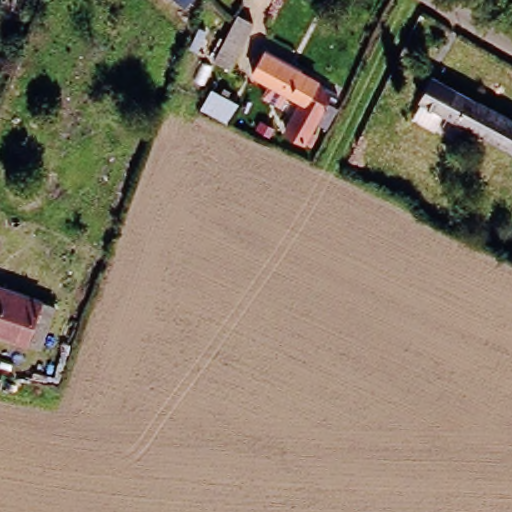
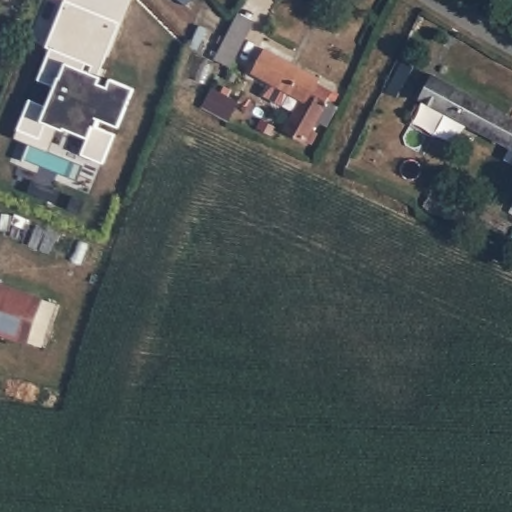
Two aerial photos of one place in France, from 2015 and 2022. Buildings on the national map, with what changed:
new [(30,99),(48,107),(56,87),(38,80),(51,49),(46,47),(63,6),(111,25),(93,69),(86,67),(83,73),(90,75),(103,80),(101,86),(110,90),(113,84),(136,92),(123,127),(105,120),(102,130),(120,137),(109,166),(86,156),(93,140),(67,130),(69,127),(50,120),(42,140),(18,130),(30,99)]
unchanged [(252,16),(230,65),(218,58),(238,10),(252,16)]
unchanged [(296,70),(295,72),(312,81),(311,82),(332,95),(318,122),(312,119),(302,136),(283,126),(297,99),(249,72),(261,51),(296,70)]
unchanged [(41,77),(13,135),(0,131),(0,102),(19,65),(41,77)]
unchanged [(433,69),(512,113),(512,142),(420,93),(433,69)]
unchanged [(203,96),(241,112),(235,126),(197,109),(203,96)]
unchanged [(35,300),(34,301),(48,306),(35,345),(20,340),(19,342),(0,335),(0,287),(35,300)]

